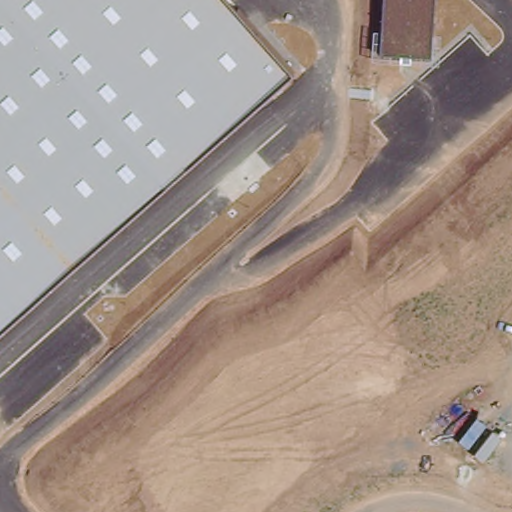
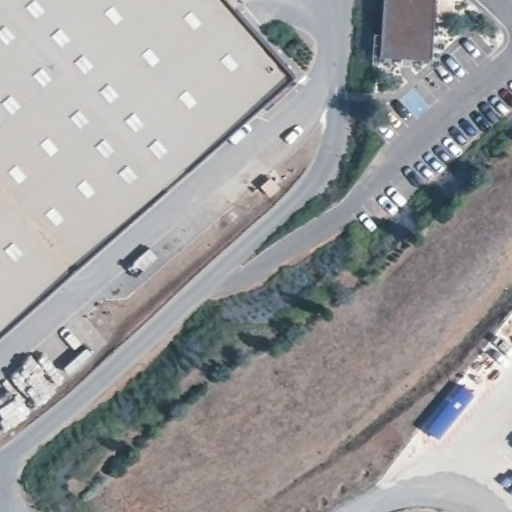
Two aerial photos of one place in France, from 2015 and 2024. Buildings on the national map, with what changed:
unchanged [(228,0),(293,75),(0,330),(0,0),(228,0)]
unchanged [(384,0),(434,0),(430,59),(379,55),(384,0)]

